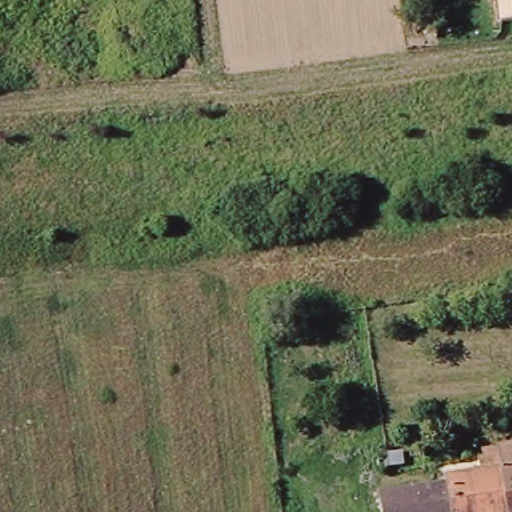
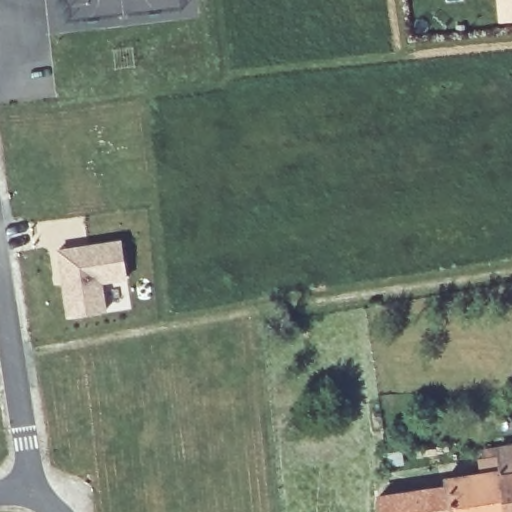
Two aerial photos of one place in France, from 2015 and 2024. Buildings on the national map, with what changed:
unchanged [(499,20),(497,0),(512,0),(512,19),(499,20)]
new [(129,277),(104,281),(107,309),(71,315),(66,285),(62,266),(61,250),(122,240),(129,277)]
unchanged [(478,453),(478,445),(512,440),(512,512),(503,512),(493,450),(478,453)]
unchanged [(493,450),(503,512),(379,512),(375,490),(440,480),(438,473),(476,467),(473,453),(478,453),(493,450)]

